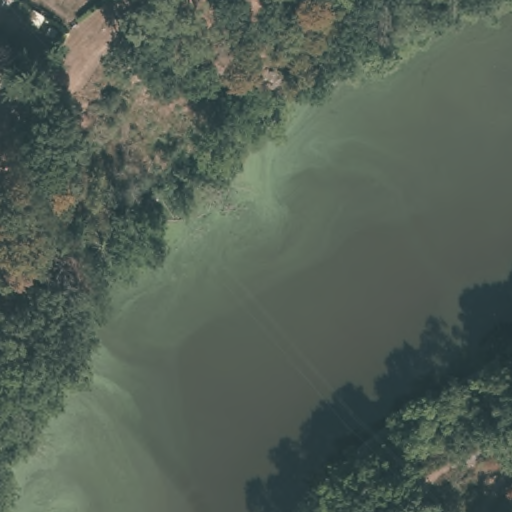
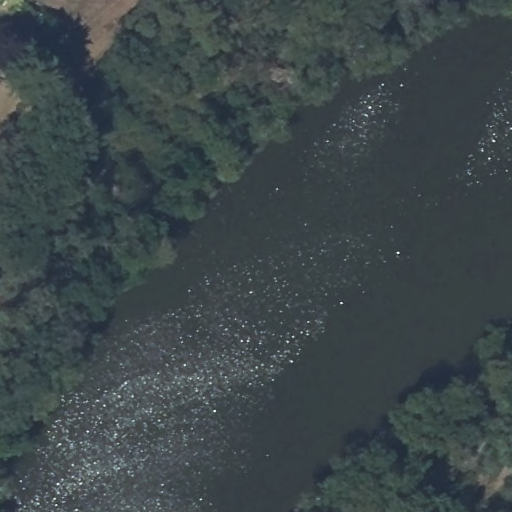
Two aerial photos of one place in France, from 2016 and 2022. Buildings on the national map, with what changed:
unchanged [(52,27),(57,31),(57,35),(55,37),(52,36),(48,34),(52,27)]

